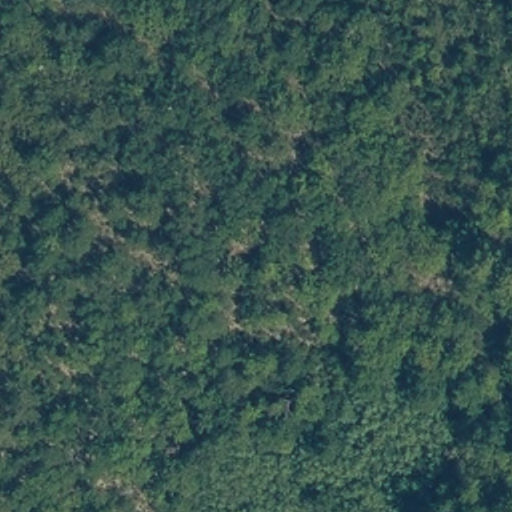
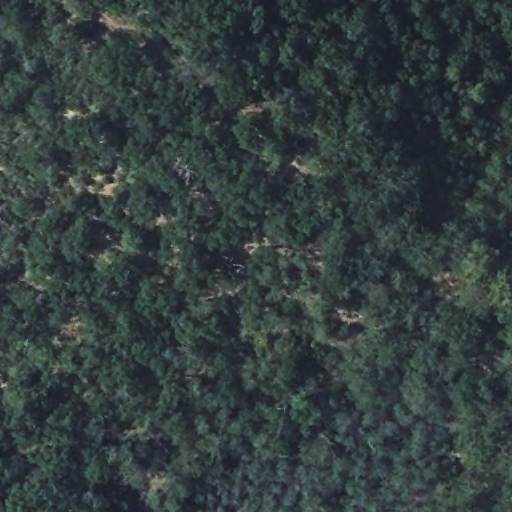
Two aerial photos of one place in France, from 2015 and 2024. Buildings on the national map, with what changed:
[]

